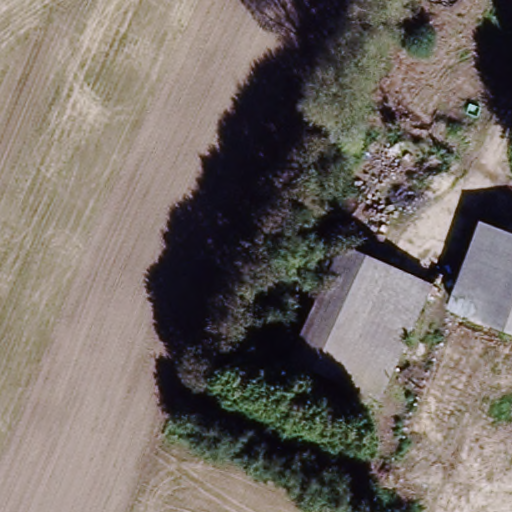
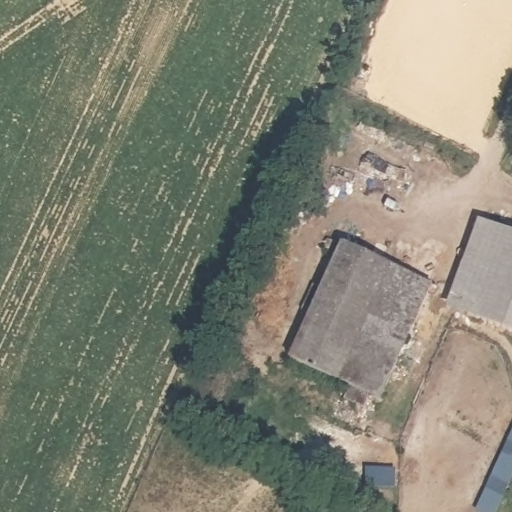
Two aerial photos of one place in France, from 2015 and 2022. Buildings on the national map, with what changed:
unchanged [(446,312),(482,220),(512,231),(512,337),(446,312)]
unchanged [(430,288),(380,405),(371,401),(365,415),(338,404),(345,387),(289,360),(341,247),(430,288)]
new [(497,512),(480,512),(476,510),(512,433),(512,479),(497,512)]

